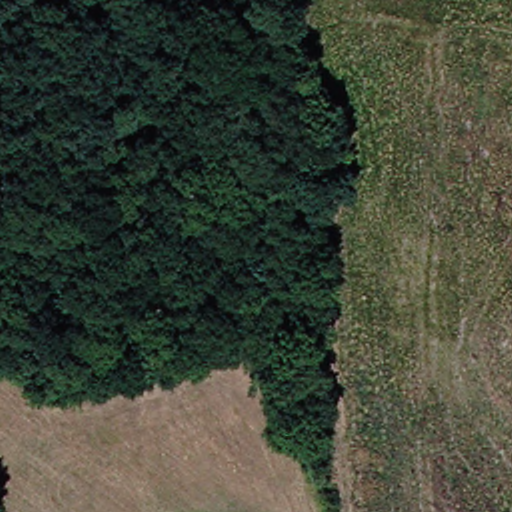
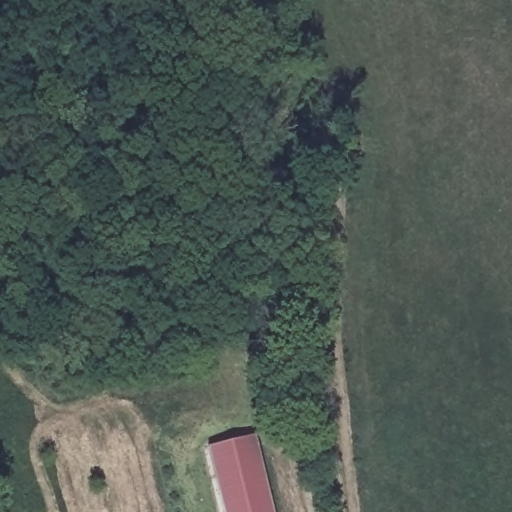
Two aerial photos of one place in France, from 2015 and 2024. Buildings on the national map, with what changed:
new [(207,448),(255,437),(273,512),(223,512),(207,448)]

